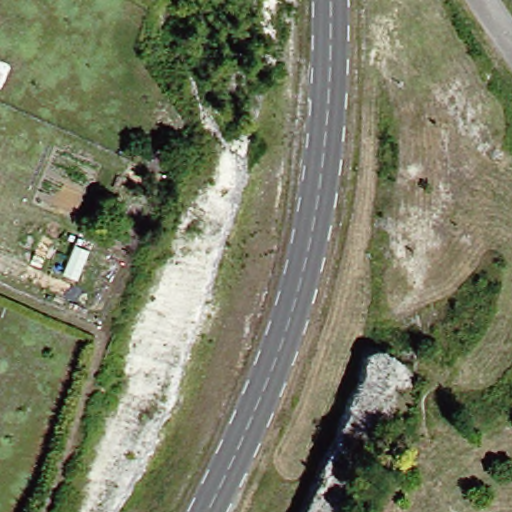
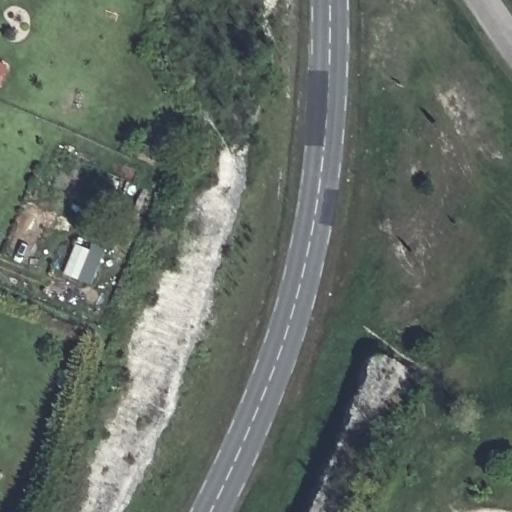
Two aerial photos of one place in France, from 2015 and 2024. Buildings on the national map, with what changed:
[]

